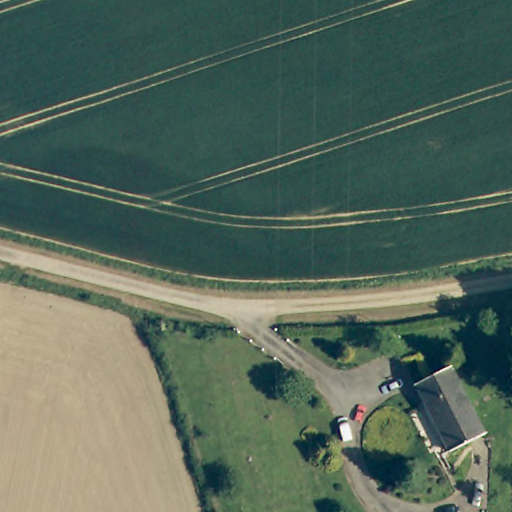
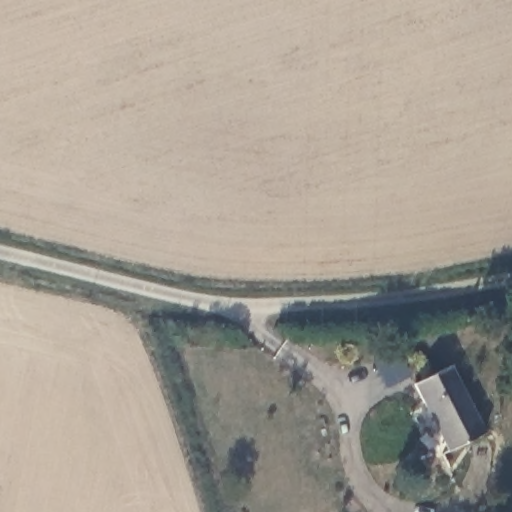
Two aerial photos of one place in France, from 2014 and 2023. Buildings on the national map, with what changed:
unchanged [(455,366),(489,434),(453,453),(419,385),(455,366)]

